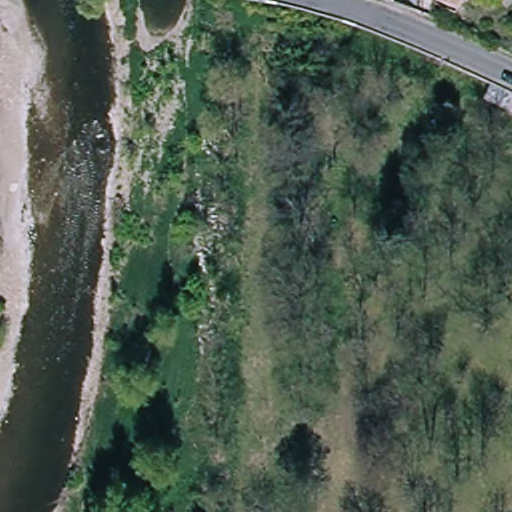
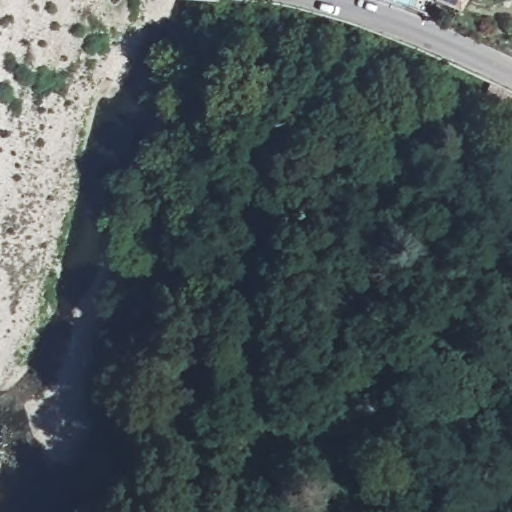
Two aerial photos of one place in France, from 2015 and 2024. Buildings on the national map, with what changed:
unchanged [(435,0),(460,0),(452,14),(435,0)]
unchanged [(484,101),(490,84),(512,94),(512,115),(484,101)]

